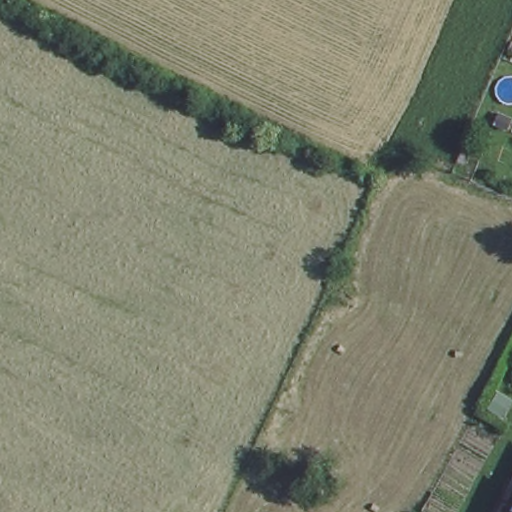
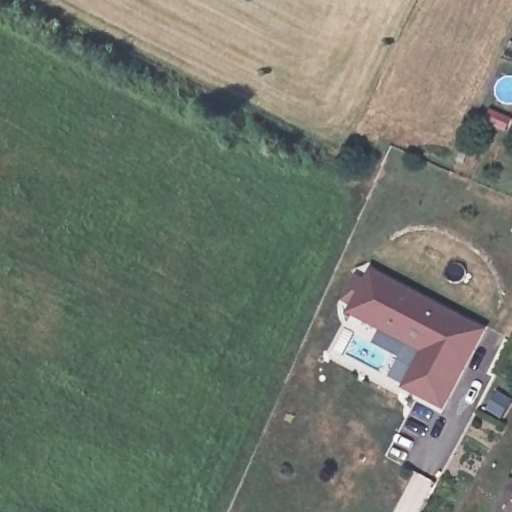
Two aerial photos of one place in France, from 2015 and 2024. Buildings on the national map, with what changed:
new [(403,388),(421,352),(348,313),(352,305),(342,301),(355,272),(366,278),(370,268),(488,330),(445,411),(403,388)]
unchanged [(506,512),(512,499),(512,512),(506,512)]

